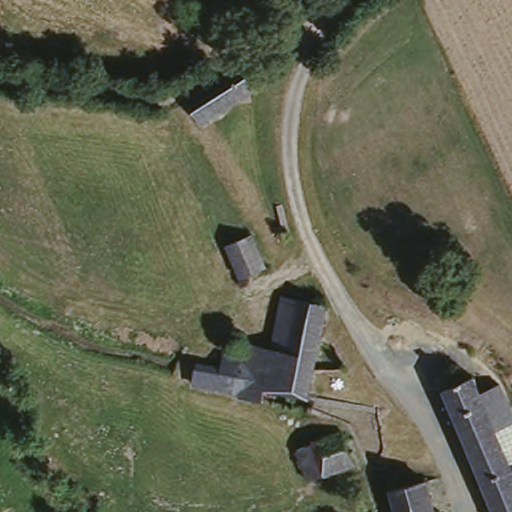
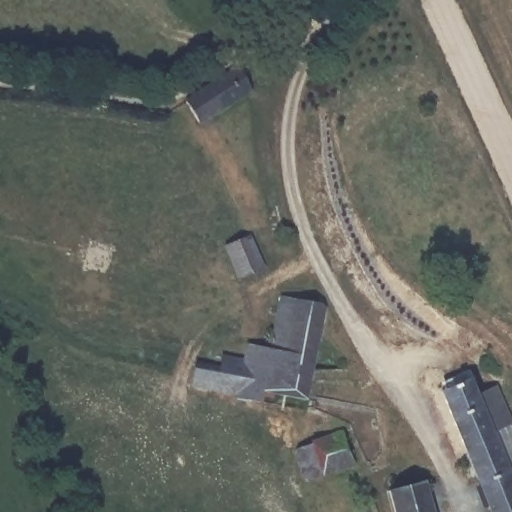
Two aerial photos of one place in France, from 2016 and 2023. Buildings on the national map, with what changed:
unchanged [(254,91),(200,123),(184,101),(237,68),(254,91)]
unchanged [(260,265),(237,275),(221,241),(246,232),(260,265)]
unchanged [(272,402),(276,387),(266,385),(262,384),(270,344),(280,293),(326,301),(308,394),(297,392),(294,403),(293,408),(272,402)]
unchanged [(262,384),(266,385),(262,398),(238,395),(236,391),(194,381),(197,357),(216,361),(217,349),(245,353),(250,340),(270,344),(262,384)]
unchanged [(468,377),(475,394),(496,386),(511,424),(491,432),(507,472),(512,470),(512,512),(487,512),(437,390),(468,377)]
unchanged [(307,450),(352,435),(365,464),(317,481),(307,450)]
unchanged [(389,494),(389,484),(426,476),(434,512),(394,512),(389,494)]

